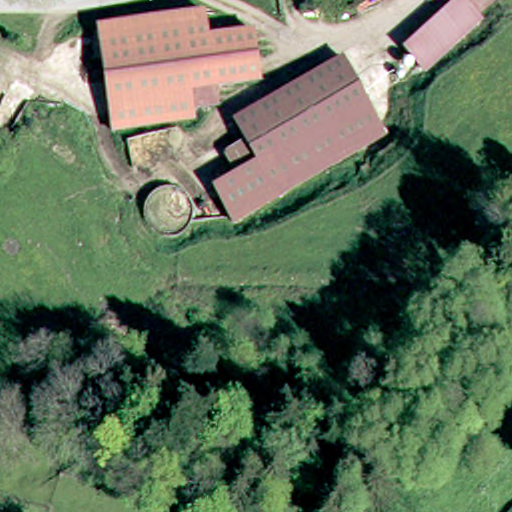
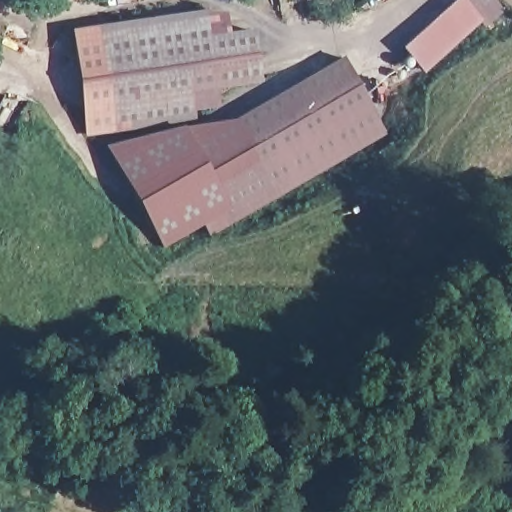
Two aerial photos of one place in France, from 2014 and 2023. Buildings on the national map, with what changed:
unchanged [(412,36),(452,0),(480,0),(489,9),(433,60),(412,36)]
unchanged [(200,36),(245,30),(252,81),(182,90),(185,119),(106,130),(91,26),(196,11),(200,36)]
new [(85,134),(70,29),(91,26),(106,130),(85,134)]
unchanged [(227,216),(206,180),(249,156),(226,115),(335,52),(379,128),(227,216)]
new [(182,90),(215,86),(219,113),(185,119),(182,90)]
new [(249,156),(206,180),(227,216),(205,227),(202,222),(160,245),(104,145),(180,126),(226,115),(249,156)]
demolished [(155,215),(152,209),(150,202),(152,194),(155,188),(160,183),(166,179),(172,177),(180,178),(191,183),(195,189),(198,196),(199,203),(197,210),(193,216),(188,221),(182,224),(174,226),(167,225),(160,222),(160,221),(155,215)]

